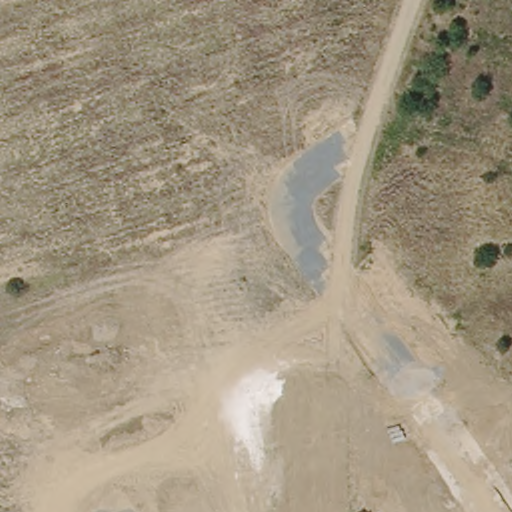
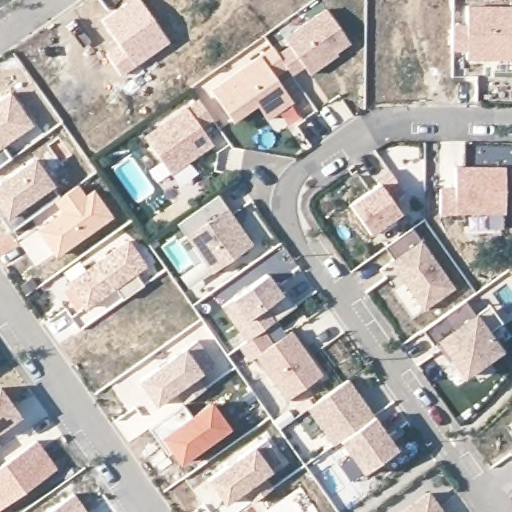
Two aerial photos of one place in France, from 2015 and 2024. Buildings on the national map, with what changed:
new [(141,0),(170,41),(121,76),(103,51),(115,43),(99,19),(128,0),(141,0)]
new [(465,23),(466,4),(512,6),(512,61),(465,62),(465,52),(451,51),(452,23),(465,23)]
new [(352,43),(311,74),(306,66),(293,75),(287,68),(275,76),(294,103),(269,119),(258,103),(234,120),(212,90),(274,47),(279,55),(291,46),(286,38),(327,10),(352,43)]
new [(10,90),(35,124),(4,147),(11,158),(0,165),(0,96),(10,90)]
new [(186,105),(199,97),(207,109),(195,117),(186,105)]
new [(185,108),(210,143),(168,172),(143,137),(185,108)]
new [(55,185),(53,187),(60,196),(33,215),(31,217),(11,230),(0,215),(0,182),(34,157),(55,185)]
new [(452,186),(453,164),(505,163),(504,215),(467,215),(439,215),(439,186),(452,186)]
new [(78,182),(86,193),(94,188),(114,216),(56,259),(53,255),(34,228),(37,225),(31,217),(78,182)]
new [(402,212),(371,235),(350,205),(380,183),(402,212)]
new [(251,243),(210,272),(175,222),(217,194),(251,243)]
new [(454,289),(423,311),(390,263),(395,260),(385,246),(412,229),(454,289)]
new [(146,265),(136,273),(143,284),(123,299),(115,288),(85,310),(67,281),(68,280),(62,271),(79,260),(85,269),(128,239),(146,265)]
new [(512,278),(507,271),(512,268),(512,278)]
new [(244,340),(220,305),(265,274),(279,294),(283,290),(294,305),(260,328),(244,340)]
new [(474,314),(488,304),(502,323),(488,333),(501,351),(462,376),(440,341),(433,346),(422,331),(464,301),(474,314)]
new [(270,343),(288,331),(319,375),(284,399),(254,356),(247,360),(237,345),(260,329),(270,343)]
new [(186,345),(188,348),(204,372),(187,386),(154,410),(134,379),(186,345)]
new [(345,380),(370,417),(330,445),(304,408),(345,380)]
new [(24,417),(0,432),(0,384),(24,417)]
new [(192,414),(210,400),(231,428),(179,464),(170,451),(168,453),(150,427),(183,403),(192,414)]
new [(370,417),(374,415),(397,448),(362,474),(339,439),(370,417)]
new [(36,438),(57,468),(0,508),(0,463),(36,438)]
new [(255,444),(272,471),(223,506),(205,480),(255,444)]
new [(301,485),(320,512),(319,512),(262,512),(301,485)]
new [(74,493),(87,512),(47,512),(74,493)]
unchanged [(423,496),(433,512),(401,512),(423,496)]

